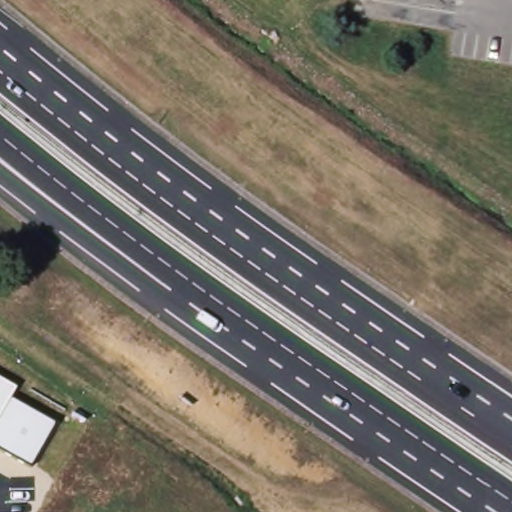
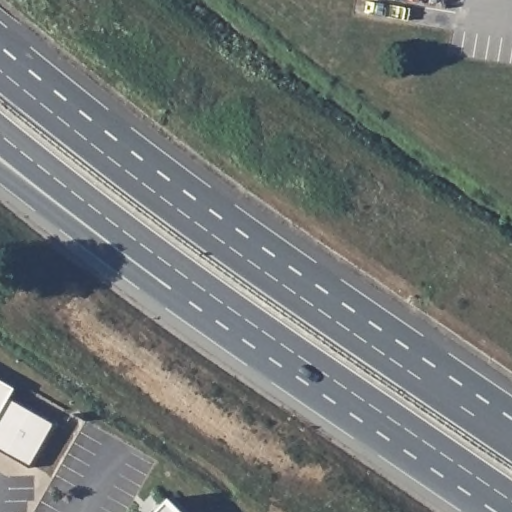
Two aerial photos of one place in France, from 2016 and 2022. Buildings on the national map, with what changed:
unchanged [(9,400),(53,424),(31,466),(0,448),(0,381),(15,390),(9,400)]
new [(157,512),(168,501),(178,512),(157,512)]

